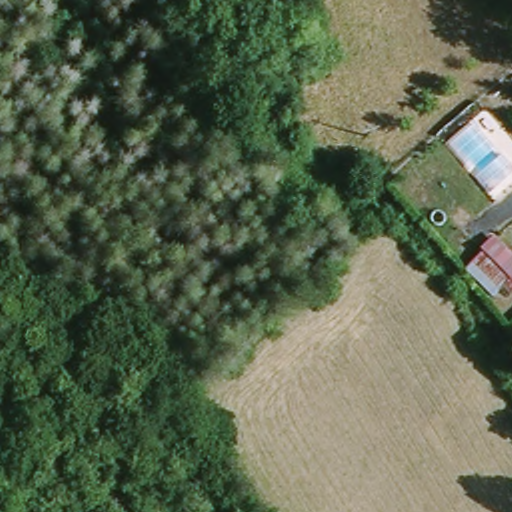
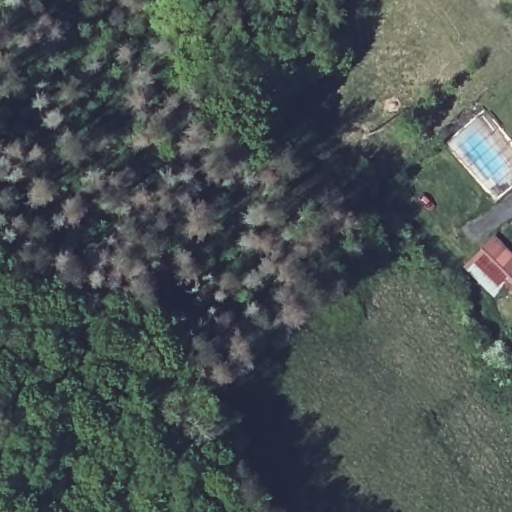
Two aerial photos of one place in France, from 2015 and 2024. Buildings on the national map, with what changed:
unchanged [(500,236),(512,248),(512,297),(511,298),(500,292),(495,298),(466,270),(500,236)]

